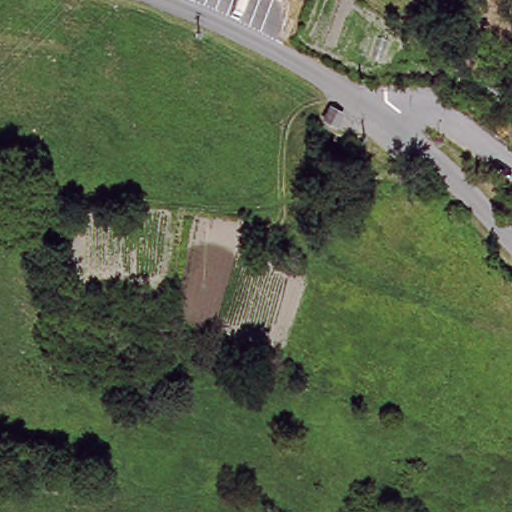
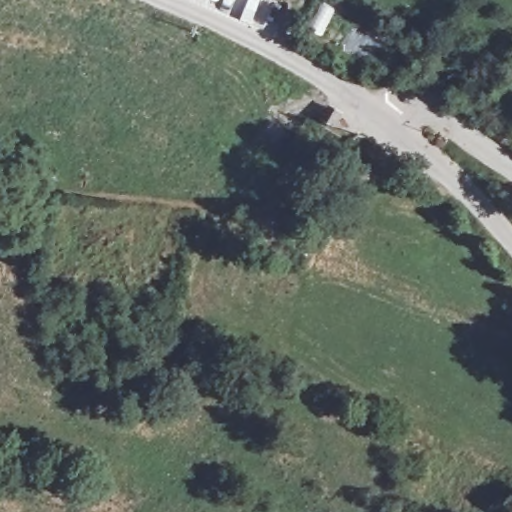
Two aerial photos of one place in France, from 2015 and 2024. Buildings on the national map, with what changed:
unchanged [(316,121),(328,125),(324,138),(312,133),(316,121)]

